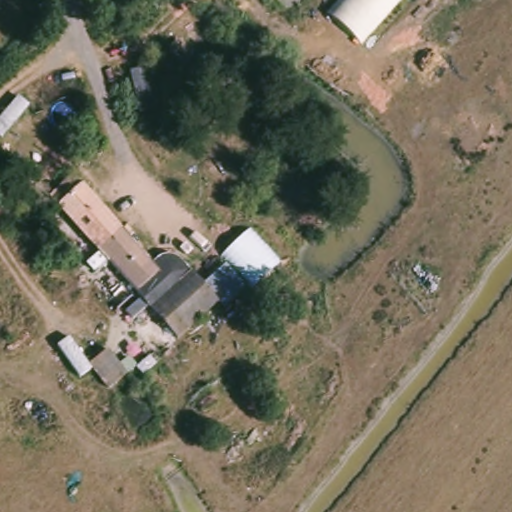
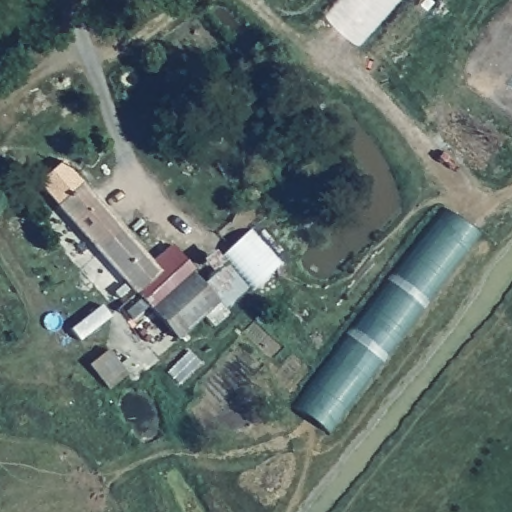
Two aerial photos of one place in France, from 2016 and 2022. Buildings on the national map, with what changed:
new [(362,47),(325,15),(338,0),(403,0),(362,47)]
unchanged [(271,162),(258,151),(279,127),(291,139),(271,162)]
unchanged [(241,296),(220,315),(212,304),(169,342),(144,312),(162,295),(148,278),(128,295),(54,213),(62,206),(51,194),(71,177),(146,262),(153,257),(162,255),(172,257),(177,259),(182,263),(200,286),(221,270),(241,296)]
unchanged [(336,210),(322,199),(335,183),(348,196),(336,210)]
new [(329,435),(290,406),(441,207),(480,235),(329,435)]

